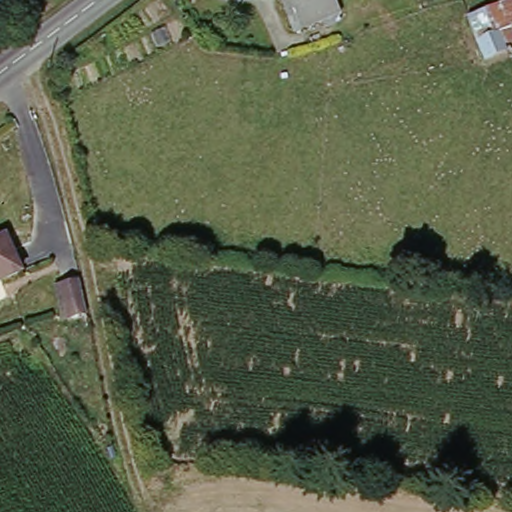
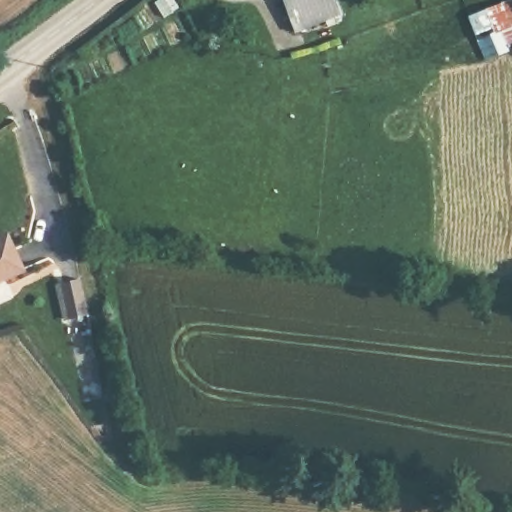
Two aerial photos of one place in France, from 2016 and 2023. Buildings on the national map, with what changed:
unchanged [(344,11),(302,29),(288,0),(339,0),(344,11)]
unchanged [(509,0),(512,0),(512,28),(507,30),(512,45),(512,53),(488,62),(470,15),(509,0)]
unchanged [(11,240),(27,275),(0,286),(0,245),(11,240)]
unchanged [(72,319),(63,284),(79,280),(83,279),(91,314),(88,315),(72,319)]

